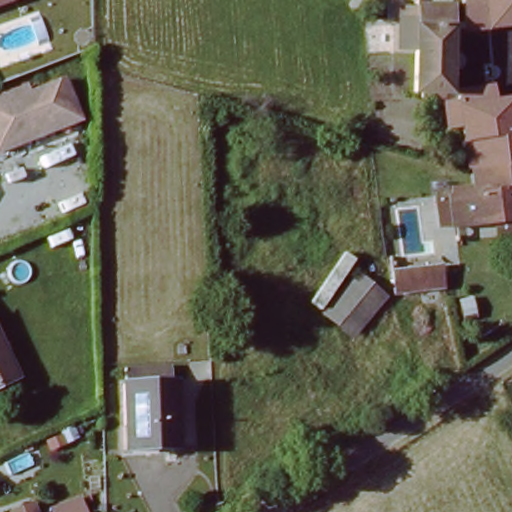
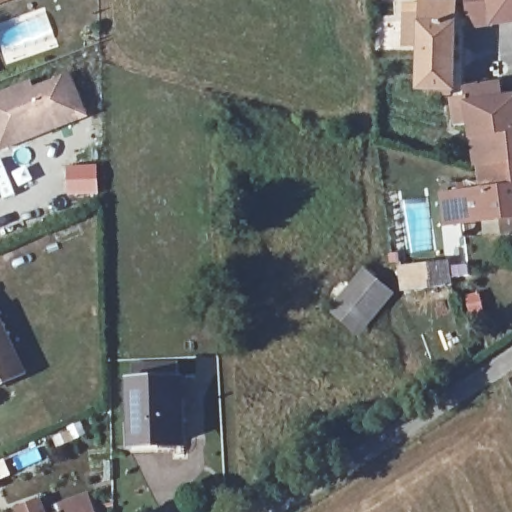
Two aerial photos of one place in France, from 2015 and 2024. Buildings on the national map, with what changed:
unchanged [(0,8),(0,0),(21,0),(0,8)]
unchanged [(495,26),(465,34),(469,0),(495,0),(495,26)]
unchanged [(495,0),(512,0),(512,26),(495,26),(495,0)]
unchanged [(447,93),(420,92),(425,2),(450,4),(447,93)]
unchanged [(1,112),(62,90),(73,118),(11,140),(1,112)]
unchanged [(475,173),(469,175),(450,98),(482,90),(487,103),(505,98),(512,129),(512,165),(510,165),(475,173)]
unchanged [(450,200),(479,189),(475,173),(510,165),(512,165),(512,216),(457,230),(450,200)]
unchanged [(402,272),(415,267),(448,255),(457,281),(419,296),(410,299),(402,272)]
unchanged [(327,310),(361,265),(395,295),(360,338),(327,310)]
unchanged [(0,389),(0,317),(1,319),(24,379),(0,389)]
unchanged [(183,446),(133,449),(129,388),(181,386),(183,446)]

